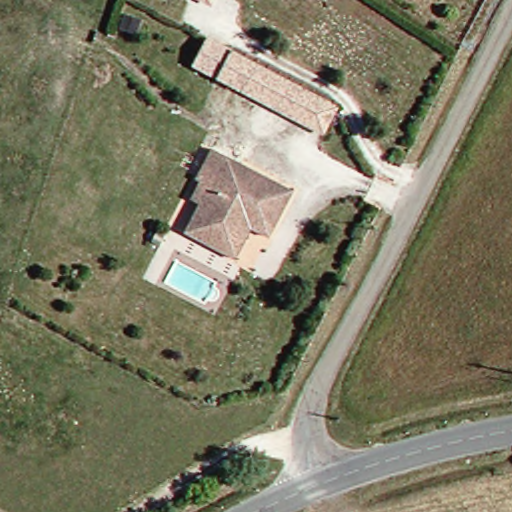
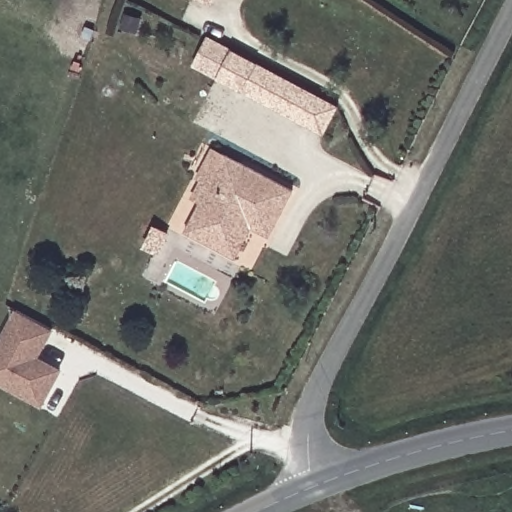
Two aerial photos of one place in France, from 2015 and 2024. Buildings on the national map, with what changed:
unchanged [(191,0),(201,0),(199,4),(191,0)]
unchanged [(187,66),(203,39),(331,111),(315,138),(291,125),(236,94),(187,66)]
unchanged [(234,257),(184,229),(200,200),(193,196),(203,179),(198,176),(214,146),(300,194),(275,240),(259,230),(242,261),(234,257)]
new [(41,350),(35,361),(58,374),(39,408),(0,387),(0,341),(16,313),(51,333),(41,350)]

